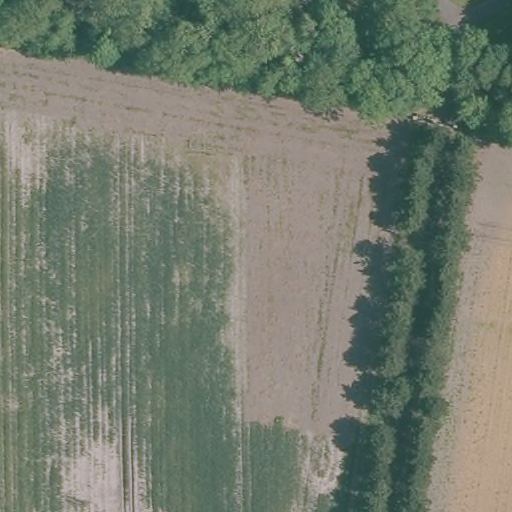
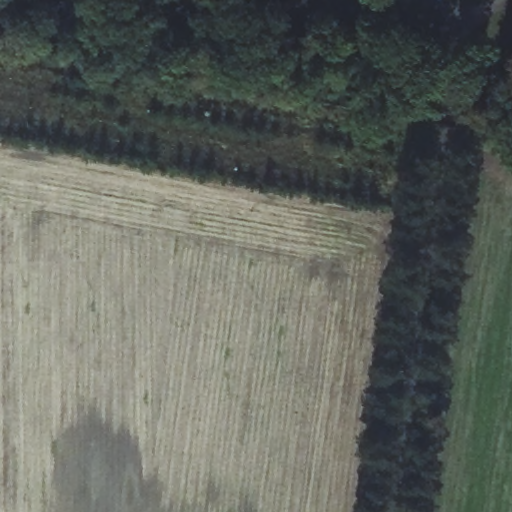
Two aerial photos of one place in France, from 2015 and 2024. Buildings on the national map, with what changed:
unchanged [(306,5),(289,4),(289,0),(306,0),(306,5)]

